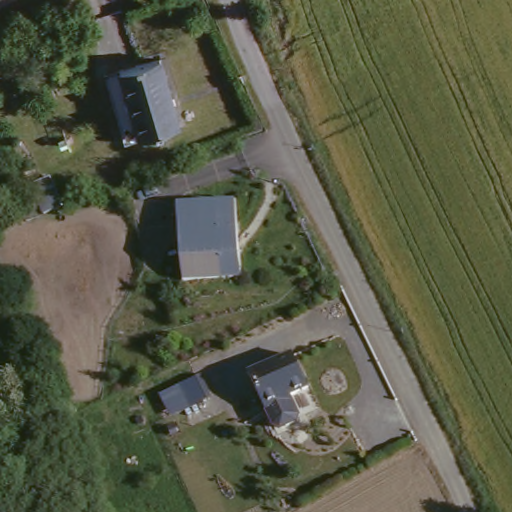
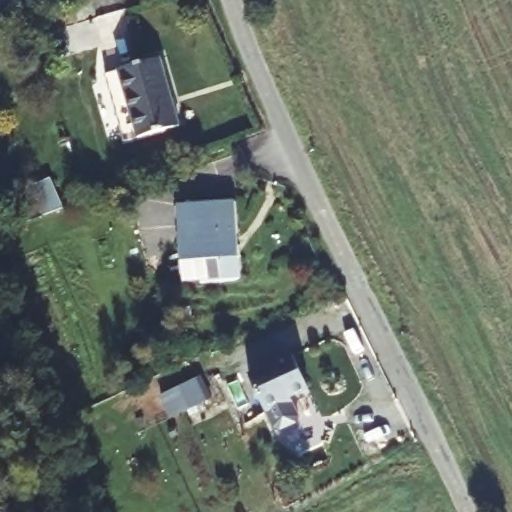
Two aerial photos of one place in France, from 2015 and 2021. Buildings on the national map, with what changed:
unchanged [(175,50),(200,117),(130,136),(105,69),(175,50)]
unchanged [(58,212),(40,219),(35,220),(27,188),(49,181),(58,212)]
unchanged [(184,288),(178,213),(236,209),(242,285),(184,288)]
unchanged [(291,359),(305,390),(286,398),(295,417),(292,424),(276,431),(270,428),(247,378),(291,359)]
unchanged [(205,407),(187,415),(177,392),(195,384),(205,407)]

